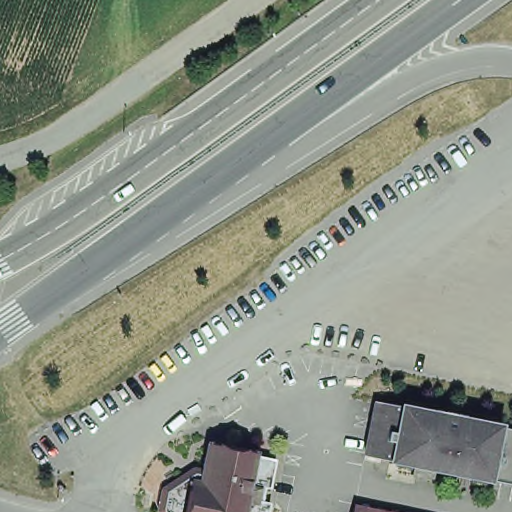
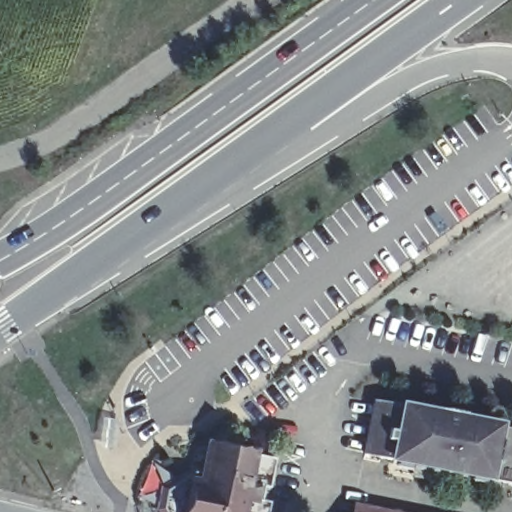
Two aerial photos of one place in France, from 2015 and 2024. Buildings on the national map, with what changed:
unchanged [(390,457),(363,452),(374,400),(400,405),(390,457)]
unchanged [(481,476),(390,457),(400,405),(492,424),(481,476)]
unchanged [(492,424),(512,428),(512,482),(481,476),(492,424)]
unchanged [(199,482),(202,468),(207,443),(252,452),(248,470),(265,473),(261,499),(269,501),(266,512),(184,512),(190,480),(199,482)]
unchanged [(202,468),(199,482),(190,480),(184,512),(159,512),(155,507),(160,486),(172,478),(191,466),(202,468)]
unchanged [(359,507),(359,506),(389,512),(349,512),(350,505),(359,507)]

